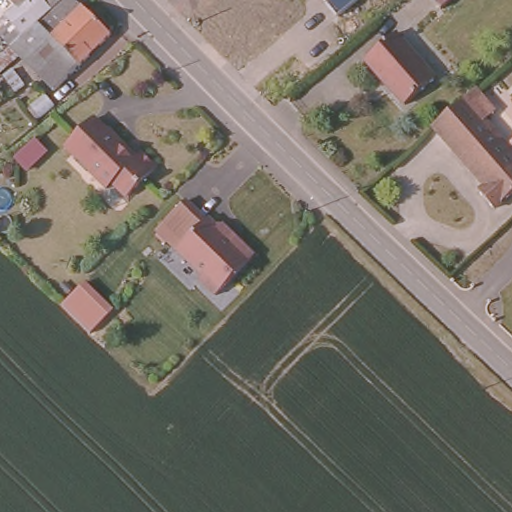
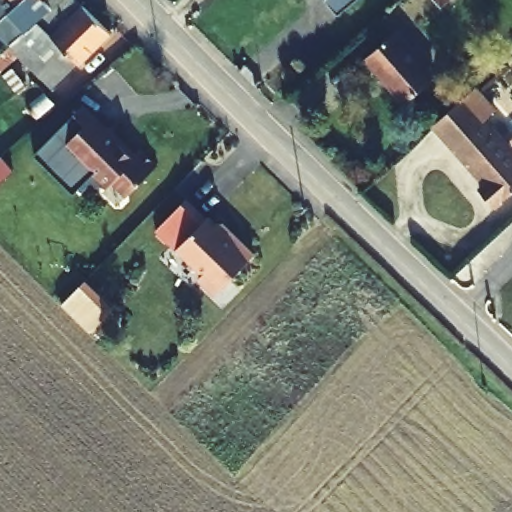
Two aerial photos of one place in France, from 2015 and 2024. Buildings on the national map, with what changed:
unchanged [(79,0),(112,34),(55,91),(11,47),(26,34),(10,15),(27,0),(79,0)]
unchanged [(325,1),(324,0),(357,0),(337,16),(325,1)]
unchanged [(436,74),(406,99),(367,51),(397,26),(436,74)]
unchanged [(472,100),(475,98),(493,117),(482,127),(512,159),(512,196),(491,217),(474,199),(482,193),(430,137),(472,100)]
unchanged [(65,142),(92,115),(101,125),(109,124),(124,139),(122,141),(128,147),(136,148),(142,141),(161,160),(132,188),(120,176),(113,176),(104,185),(65,142)]
unchanged [(194,272),(197,270),(154,225),(184,195),(200,212),(204,210),(212,216),(224,215),(230,223),(227,227),(234,233),(239,230),(255,246),(210,288),(194,272)]
unchanged [(89,275),(117,302),(94,325),(66,297),(89,275)]

